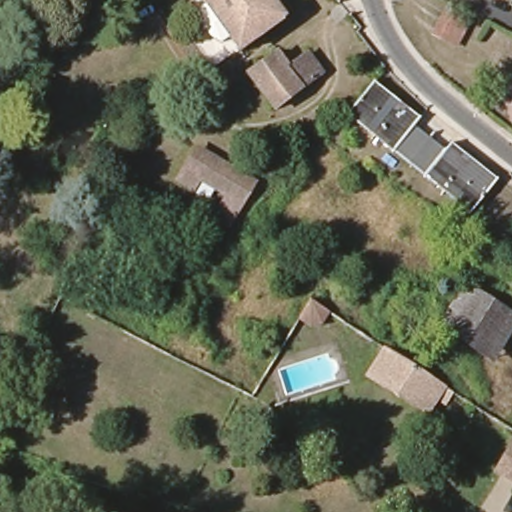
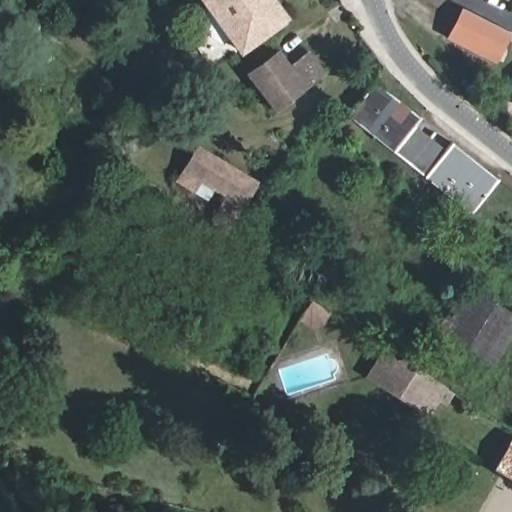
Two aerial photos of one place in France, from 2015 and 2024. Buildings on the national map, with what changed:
unchanged [(238,56),(200,0),(267,0),(283,24),(238,56)]
new [(511,33),(496,64),(445,37),(461,7),(511,33)]
unchanged [(271,112),(245,74),(272,55),(285,74),(305,61),(316,77),(297,92),(271,112)]
unchanged [(373,85),(414,117),(420,121),(416,127),(447,152),(452,145),(498,182),(475,212),(391,147),(350,115),(373,85)]
unchanged [(239,212),(183,177),(190,166),(202,146),(214,153),(258,181),(239,212)]
unchanged [(467,346),(441,328),(467,286),(495,304),(467,346)]
unchanged [(512,315),(512,326),(490,360),(467,346),(495,304),(512,315)]
unchanged [(313,331),(298,336),(286,327),(298,307),(320,320),(313,331)]
unchanged [(412,401),(388,387),(371,377),(376,370),(387,352),(445,387),(453,393),(446,405),(437,400),(432,406),(429,412),(412,401)]
unchanged [(512,414),(512,417),(504,426),(470,406),(480,392),(512,414)]
unchanged [(497,470),(512,444),(512,478),(497,470)]

